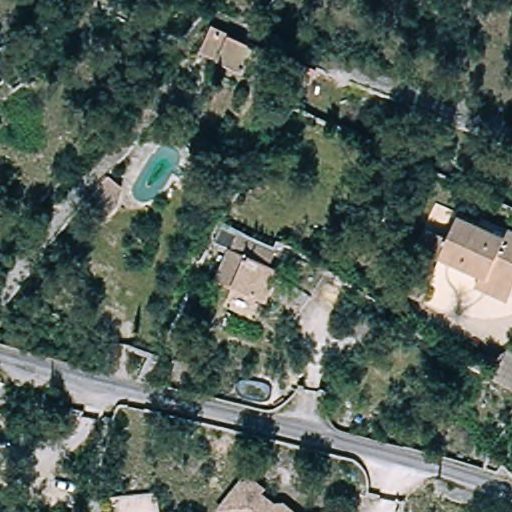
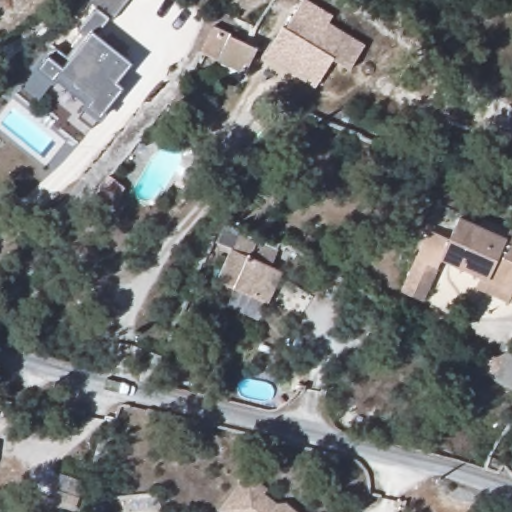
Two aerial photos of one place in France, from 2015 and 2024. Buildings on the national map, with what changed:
new [(111,20),(107,18),(95,35),(127,63),(112,80),(120,88),(89,126),(77,116),(88,100),(67,80),(48,78),(33,68),(43,55),(57,67),(83,35),(75,29),(92,8),(88,2),(90,0),(127,0),(111,20)]
new [(262,56),(280,28),(282,29),(293,14),(322,31),(327,23),(362,45),(349,69),(332,60),(314,87),(262,56)]
unchanged [(260,47),(249,78),(218,66),(219,61),(200,53),(213,23),(230,31),(235,34),(241,38),(260,47)]
unchanged [(442,258),(419,300),(399,288),(432,227),(451,237),(463,215),(509,239),(512,235),(512,294),(511,295),(506,305),(484,292),(474,286),(479,278),(442,258)]
unchanged [(229,254),(215,247),(224,227),(278,253),(272,269),(276,270),(265,300),(237,290),(216,282),(229,254)]
unchanged [(173,348),(174,338),(191,344),(185,374),(169,369),(173,348)]
unchanged [(510,346),(512,347),(512,391),(492,381),(510,346)]
unchanged [(249,471),(269,488),(265,492),(278,503),(287,501),(299,512),(221,512),(218,510),(249,471)]
unchanged [(354,512),(350,512),(354,511),(354,512)]

